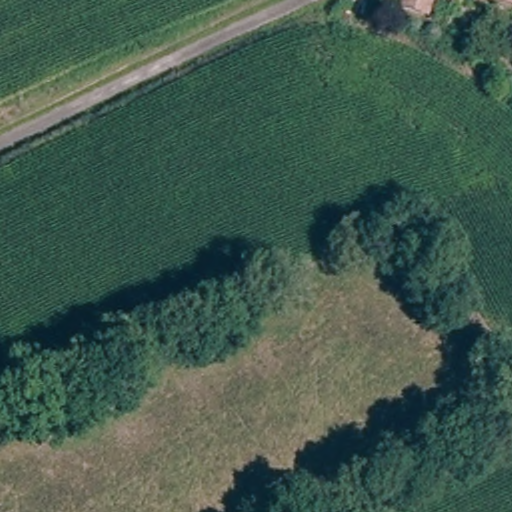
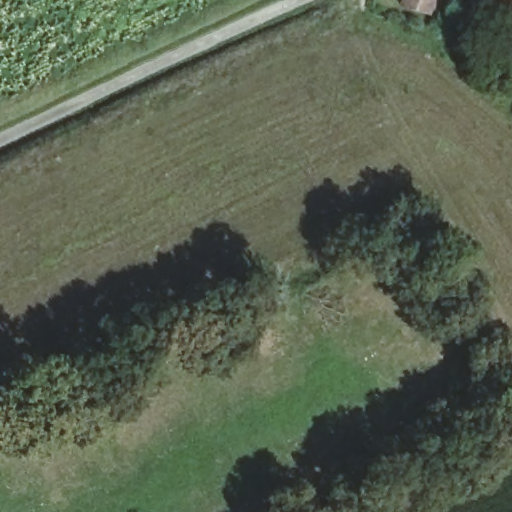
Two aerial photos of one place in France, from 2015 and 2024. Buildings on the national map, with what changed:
unchanged [(428,0),(425,9),(402,4),(404,0),(428,0)]
unchanged [(512,0),(512,3),(504,0),(512,0)]

